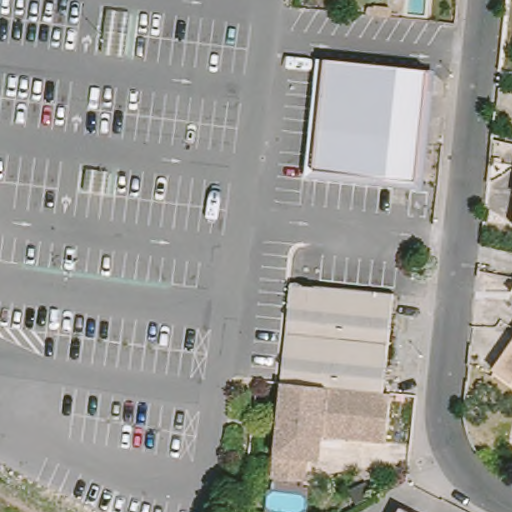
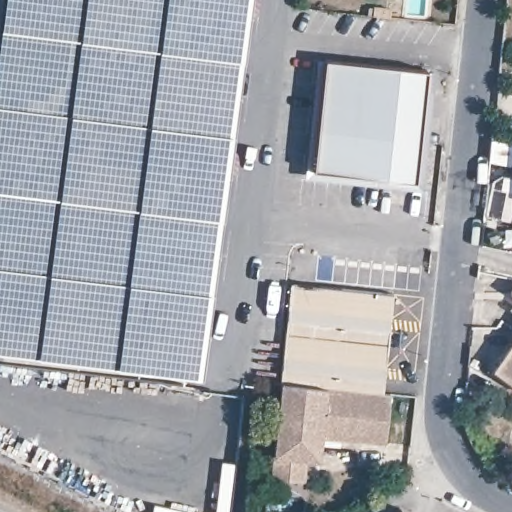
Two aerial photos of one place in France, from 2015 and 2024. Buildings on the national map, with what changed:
new [(246,9),(202,335),(190,334),(183,382),(0,359),(0,0),(174,0),(246,9)]
new [(246,9),(174,0),(247,0),(246,9)]
unchanged [(381,5),(398,7),(397,15),(380,14),(381,5)]
unchanged [(329,64),(428,75),(413,183),(315,174),(329,64)]
unchanged [(512,216),(512,223),(510,223),(512,216)]
unchanged [(512,282),(512,299),(507,296),(512,282)]
unchanged [(392,385),(378,384),(377,397),(278,386),(276,386),(289,285),(389,296),(386,320),(399,321),(392,385)]
unchanged [(512,341),(512,384),(492,370),(512,341)]
unchanged [(303,459),(300,485),(268,481),(278,386),(377,397),(384,397),(379,445),(315,438),(315,443),(313,460),(303,459)]
unchanged [(402,512),(394,512),(396,509),(402,512)]

